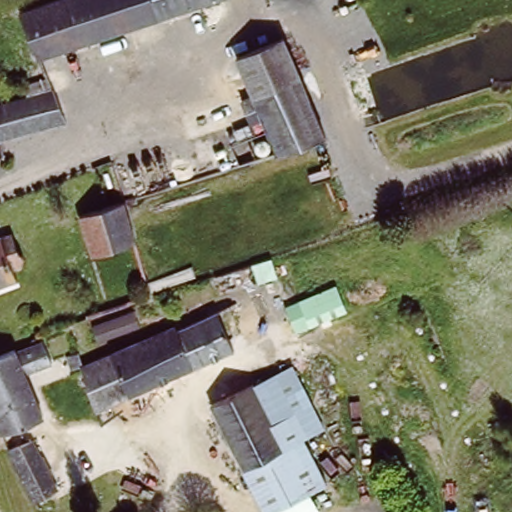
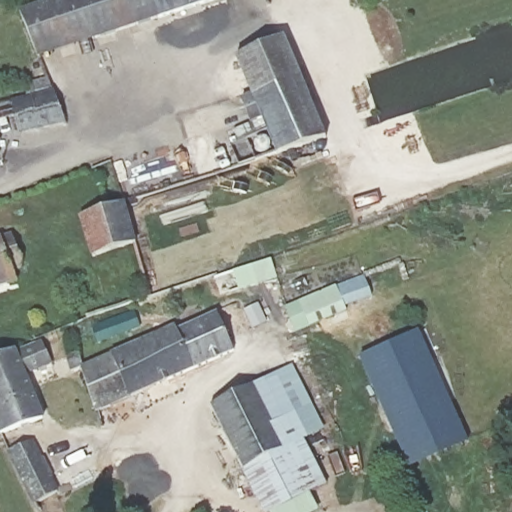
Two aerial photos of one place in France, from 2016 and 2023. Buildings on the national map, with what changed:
unchanged [(43,0),(211,0),(40,57),(24,6),(43,0)]
unchanged [(273,12),(268,0),(278,0),(282,8),(273,12)]
unchanged [(322,132),(325,137),(262,156),(247,122),(254,120),(247,105),(252,102),(233,62),(281,39),(322,132)]
unchanged [(0,101),(50,83),(63,119),(4,141),(9,155),(0,157),(0,101)]
unchanged [(137,242),(105,252),(92,212),(125,202),(137,242)]
unchanged [(22,245),(27,247),(31,251),(34,256),(34,261),(32,267),(29,270),(32,277),(0,291),(0,237),(17,231),(22,245)]
new [(364,275),(373,297),(345,308),(335,287),(364,275)]
unchanged [(347,312),(295,333),(284,307),(335,287),(347,312)]
unchanged [(105,357),(232,307),(245,341),(226,347),(229,356),(123,401),(105,357)]
new [(419,329),(467,442),(407,470),(357,356),(419,329)]
unchanged [(47,369),(30,375),(45,417),(5,435),(0,423),(0,357),(37,343),(47,369)]
unchanged [(123,401),(97,412),(78,366),(105,357),(123,401)]
new [(293,365),(325,430),(305,438),(290,446),(275,412),(282,409),(267,377),(293,365)]
unchanged [(290,446),(249,465),(217,396),(255,378),(267,377),(282,409),(275,412),(290,446)]
unchanged [(327,486),(270,511),(249,465),(290,446),(305,438),(327,486)]
unchanged [(56,491),(49,494),(54,506),(40,512),(39,512),(13,453),(35,443),(56,491)]

